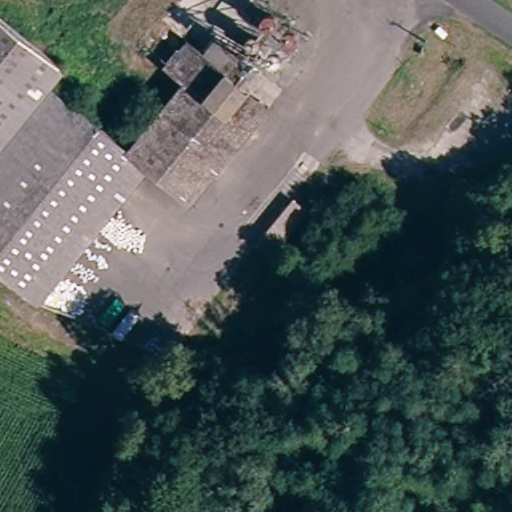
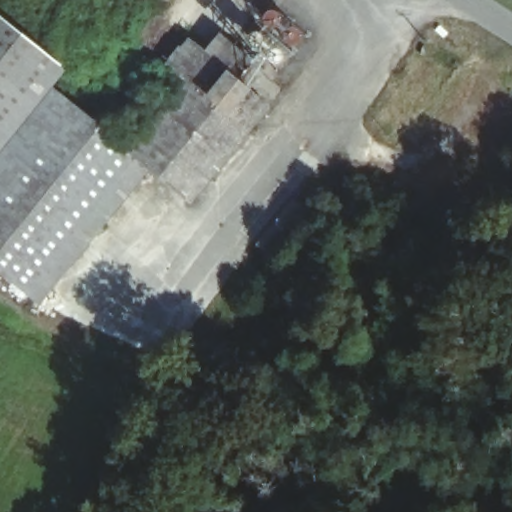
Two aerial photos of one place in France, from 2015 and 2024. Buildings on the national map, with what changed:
unchanged [(249,12),(254,14),(254,21),(251,26),(245,28),(239,25),(238,17),(245,11),(249,12)]
unchanged [(131,149),(159,110),(172,92),(169,89),(163,99),(148,86),(163,65),(144,54),(137,47),(161,12),(188,32),(211,48),(227,26),(254,46),(238,70),(269,94),(199,194),(154,164),(51,307),(0,269),(0,17),(69,66),(51,90),(131,149)]
unchanged [(273,31),(270,38),(263,40),(257,35),(258,27),(262,25),(269,23),(273,31)]
unchanged [(297,215),(288,209),(302,189),(310,197),(297,215)]

